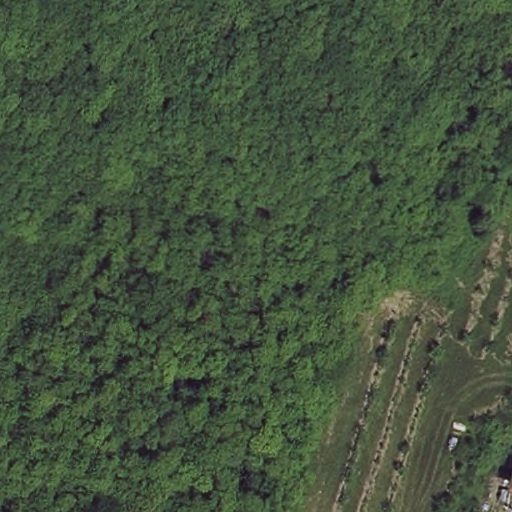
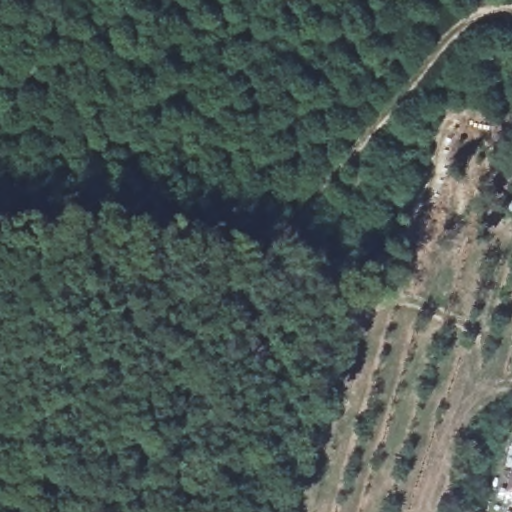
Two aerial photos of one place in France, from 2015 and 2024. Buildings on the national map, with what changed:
unchanged [(512,462),(512,482),(506,481),(512,462)]

